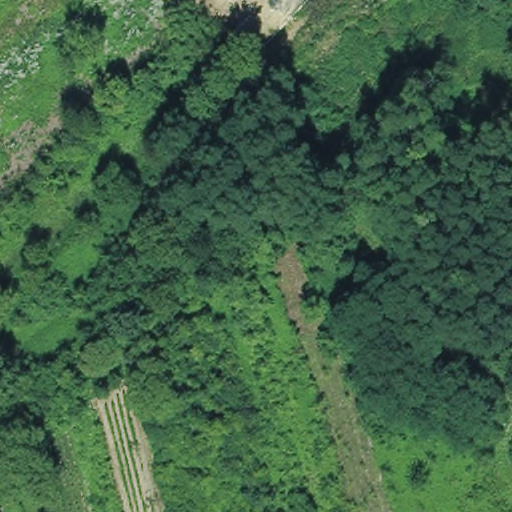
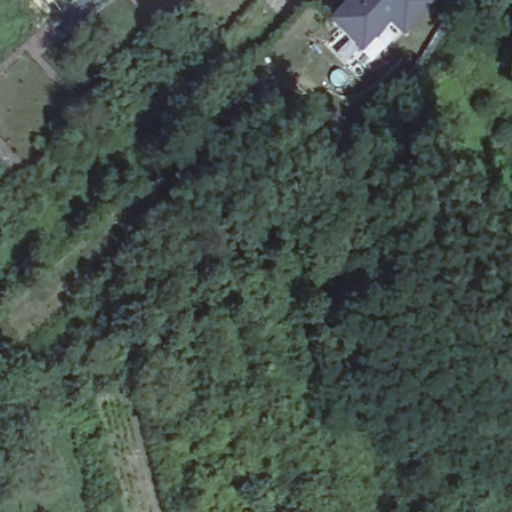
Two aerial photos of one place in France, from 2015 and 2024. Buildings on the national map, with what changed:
new [(343,30),(331,19),(349,0),(430,0),(432,1),(363,76),(329,45),(343,30)]

